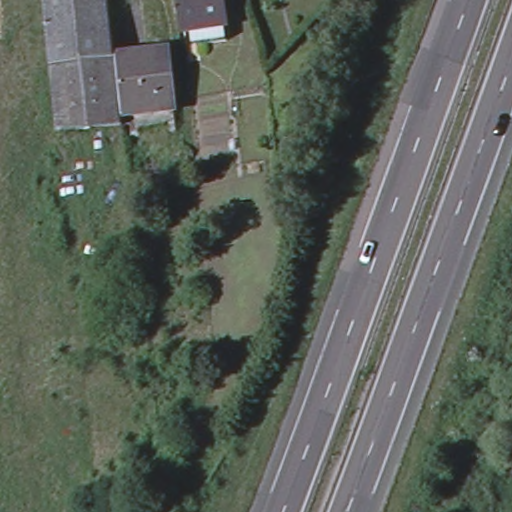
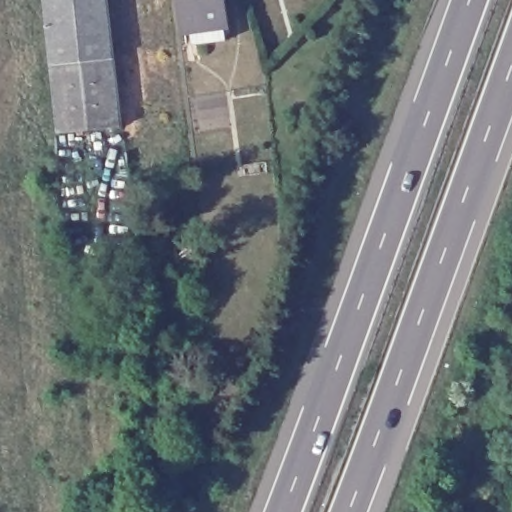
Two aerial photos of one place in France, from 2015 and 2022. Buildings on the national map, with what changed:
unchanged [(109,0),(115,60),(116,62),(50,69),(43,0),(109,0)]
unchanged [(221,0),(225,29),(180,35),(176,0),(221,0)]
demolished [(116,62),(115,60),(167,54),(174,115),(122,121),(116,62)]
unchanged [(50,69),(116,62),(122,121),(124,129),(57,136),(50,69)]

